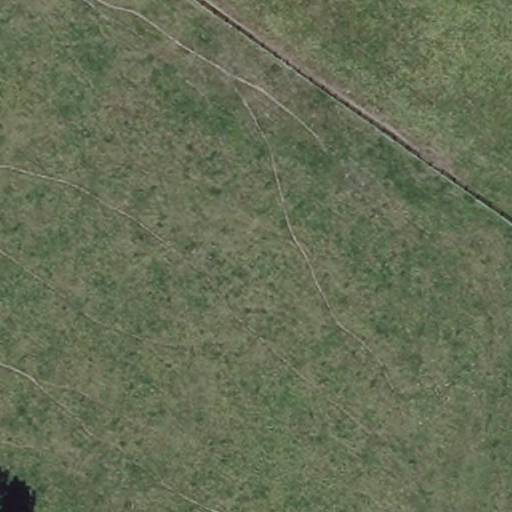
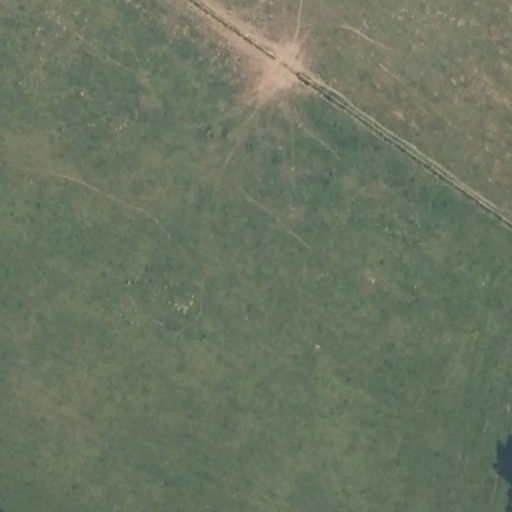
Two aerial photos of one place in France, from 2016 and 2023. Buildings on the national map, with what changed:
[]

